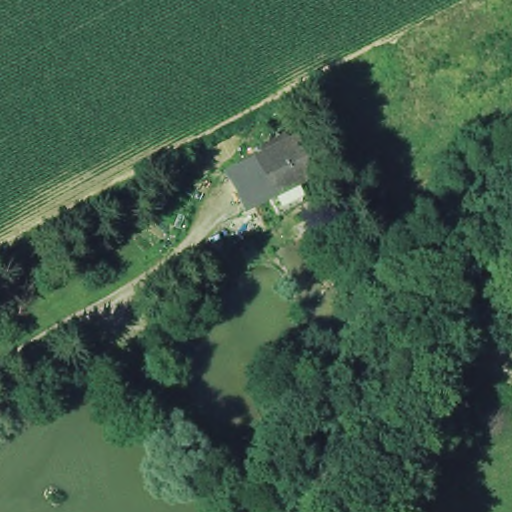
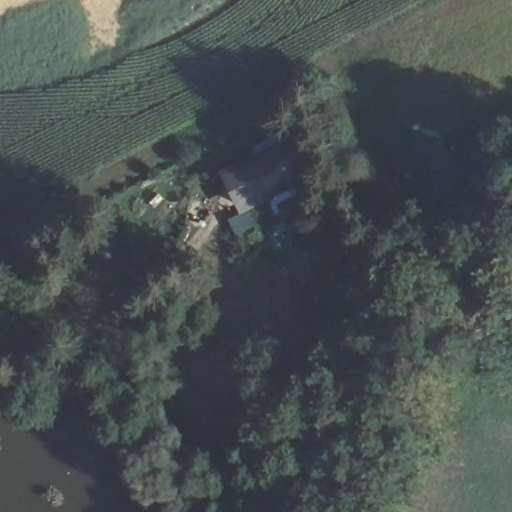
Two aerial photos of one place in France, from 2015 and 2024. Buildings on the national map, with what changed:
unchanged [(267,189),(253,160),(283,145),(298,174),(267,189)]

